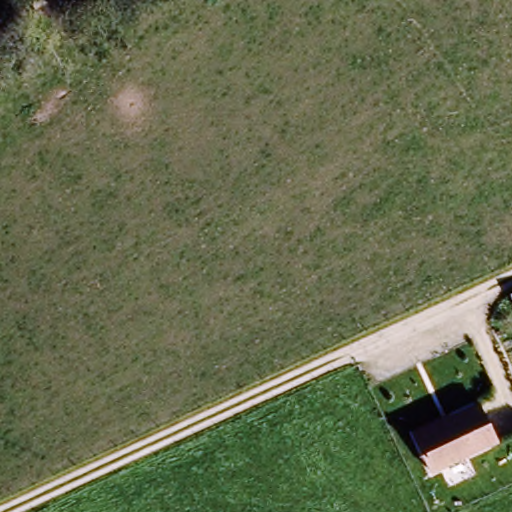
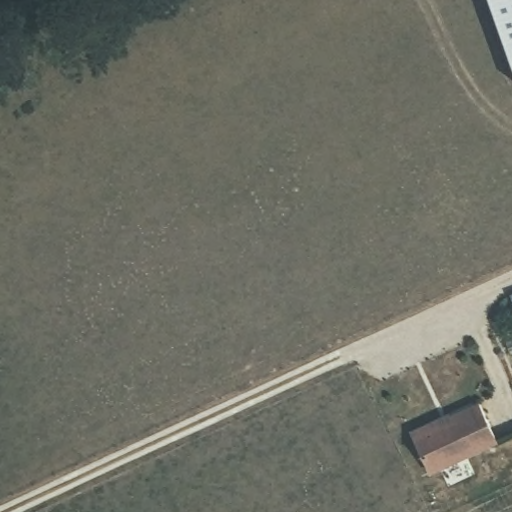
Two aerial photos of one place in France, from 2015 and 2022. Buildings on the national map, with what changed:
new [(487,0),(512,0),(512,68),(487,0)]
unchanged [(497,448),(425,477),(410,435),(479,407),(497,448)]

